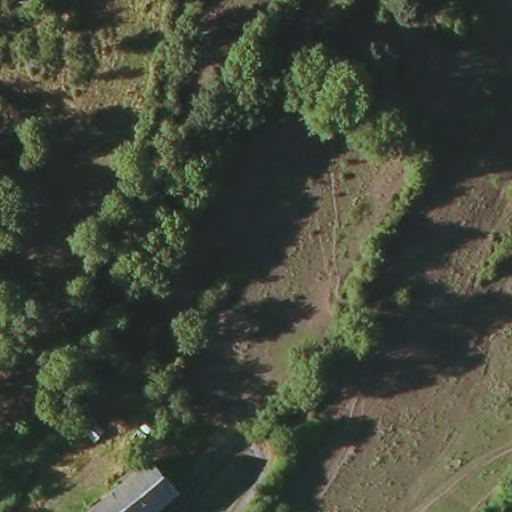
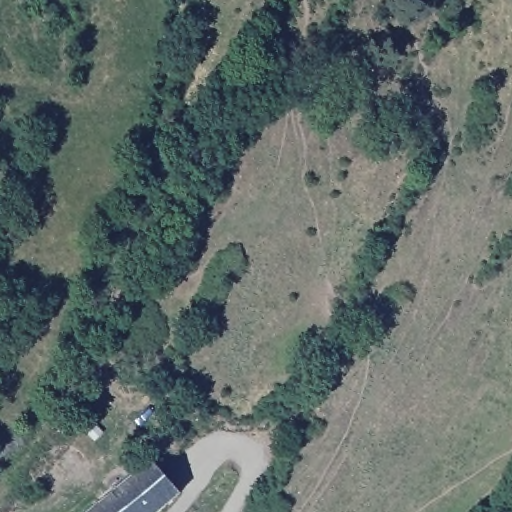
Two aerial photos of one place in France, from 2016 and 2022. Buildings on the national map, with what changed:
unchanged [(156,512),(86,512),(150,458),(180,492),(156,512)]

